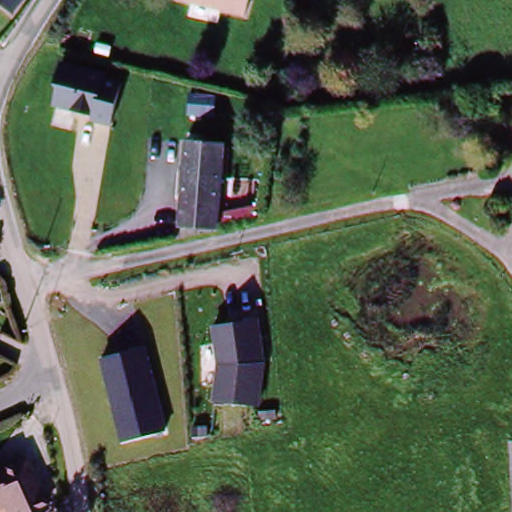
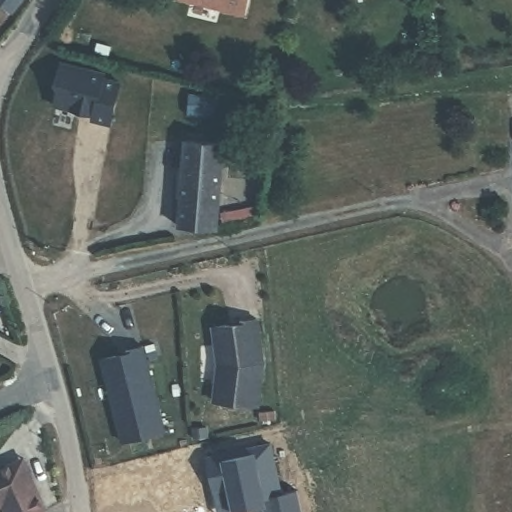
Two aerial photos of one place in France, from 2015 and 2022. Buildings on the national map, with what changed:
unchanged [(6,0),(19,0),(15,6),(6,0)]
unchanged [(169,4),(169,0),(243,0),(238,20),(169,4)]
unchanged [(90,122),(92,116),(50,106),(59,63),(107,73),(105,78),(122,82),(110,129),(90,122)]
unchanged [(179,223),(186,137),(225,141),(218,226),(179,223)]
unchanged [(220,320),(267,321),(263,403),(215,400),(220,320)]
unchanged [(97,357),(145,345),(165,430),(120,442),(97,357)]
unchanged [(509,441),(512,441),(512,507),(509,441)]
new [(300,489),(305,512),(268,512),(267,505),(237,512),(232,485),(215,488),(210,461),(209,456),(250,448),(273,443),(283,493),(300,489)]
unchanged [(15,481),(29,511),(26,512),(0,512),(0,463),(5,461),(15,481)]

